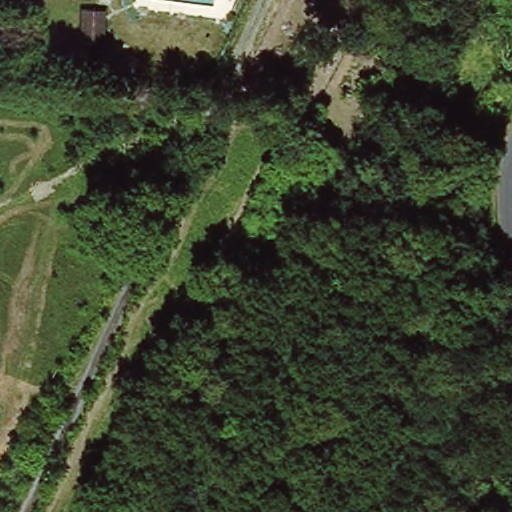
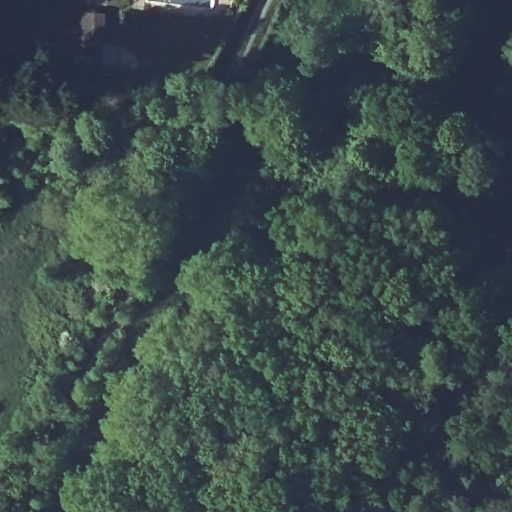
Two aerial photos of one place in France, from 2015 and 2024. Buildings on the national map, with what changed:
[]

